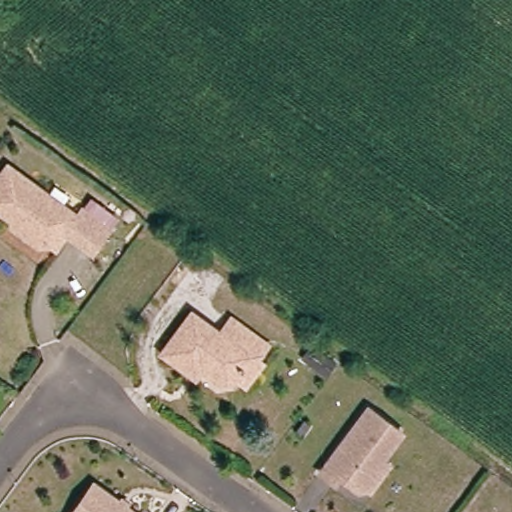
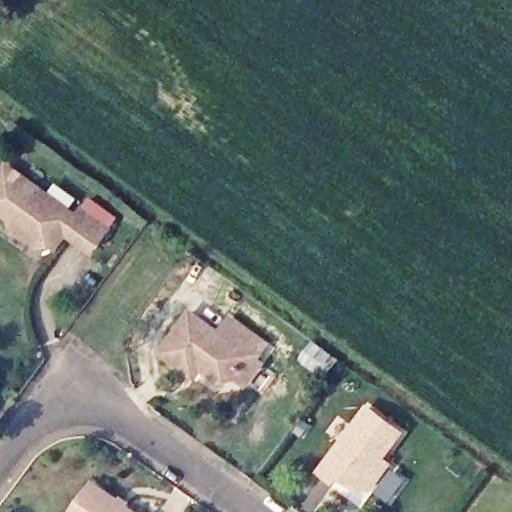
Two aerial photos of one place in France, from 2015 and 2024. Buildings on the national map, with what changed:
unchanged [(38,249),(12,230),(11,222),(0,214),(0,179),(7,169),(47,198),(77,220),(81,214),(107,234),(92,255),(65,236),(52,253),(45,247),(38,249)]
unchanged [(183,374),(156,354),(186,313),(214,334),(225,320),(262,346),(250,362),(257,365),(242,385),(231,377),(228,380),(214,383),(196,370),(190,379),(183,374)]
unchanged [(365,496),(361,494),(352,495),(333,481),(328,488),(315,477),(362,413),(396,438),(377,465),(384,470),(365,496)]
unchanged [(112,507),(115,503),(122,510),(121,512),(71,512),(87,490),(112,507)]

